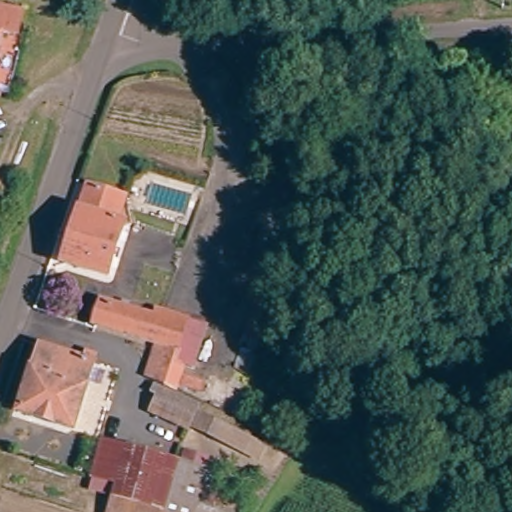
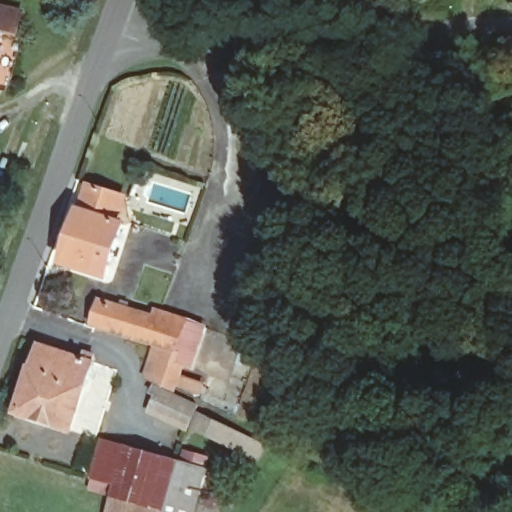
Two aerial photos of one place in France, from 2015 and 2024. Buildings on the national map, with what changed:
unchanged [(16,34),(3,31),(0,47),(0,6),(21,10),(16,34)]
unchanged [(86,190),(109,197),(121,201),(113,226),(120,229),(123,230),(106,281),(62,266),(78,215),(86,190)]
unchanged [(191,430),(189,435),(149,415),(158,386),(143,380),(154,346),(91,326),(100,303),(153,315),(154,308),(209,323),(199,361),(231,376),(225,407),(179,391),(178,400),(267,446),(261,462),(191,430)]
unchanged [(99,422),(74,416),(69,430),(15,410),(34,348),(115,376),(99,422)]
unchanged [(199,512),(108,512),(111,499),(86,494),(101,439),(228,477),(222,494),(204,492),(199,512)]

